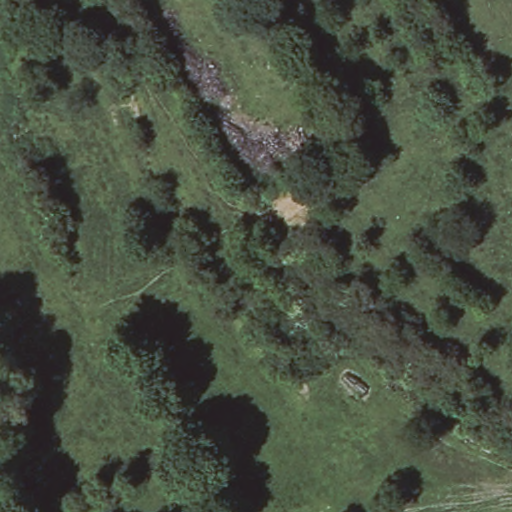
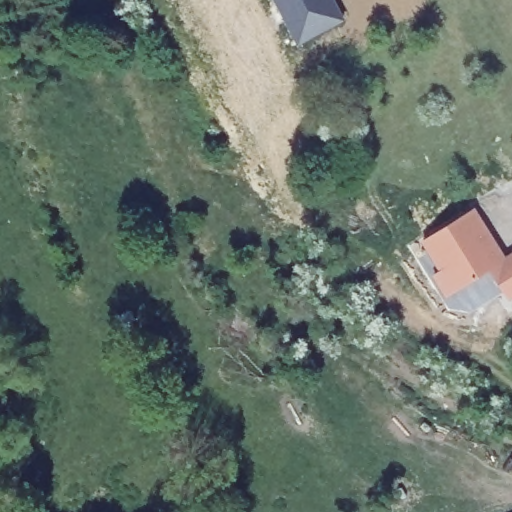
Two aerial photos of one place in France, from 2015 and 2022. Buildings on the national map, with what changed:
new [(344,21),(298,46),(273,0),(332,0),(344,21)]
new [(504,258),(512,254),(512,295),(508,297),(490,267),(460,286),(448,266),(442,269),(423,239),(474,208),(504,258)]

